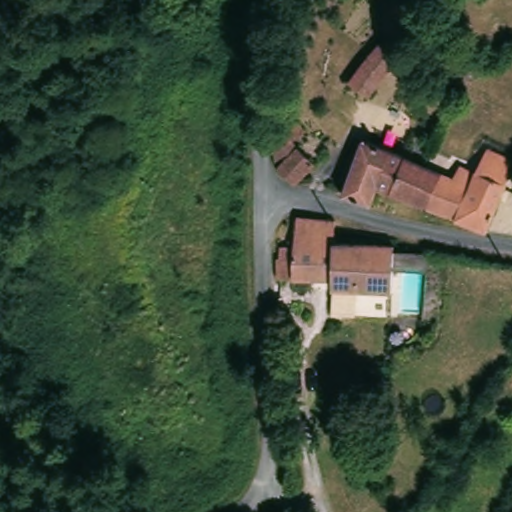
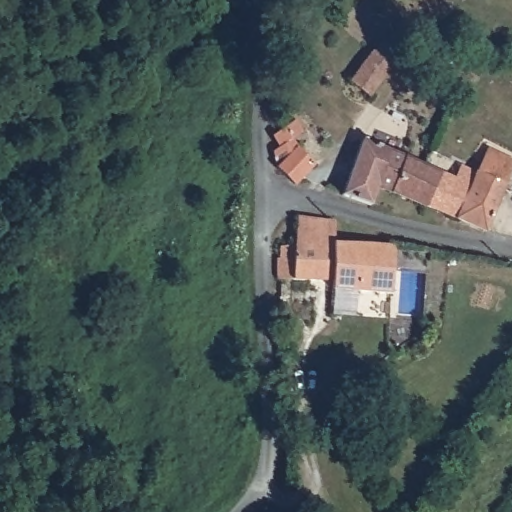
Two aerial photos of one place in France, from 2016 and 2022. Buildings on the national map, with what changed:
unchanged [(397,65),(370,99),(352,87),(367,65),(363,60),(377,42),(402,59),(397,65)]
unchanged [(288,121),(301,130),(292,143),(316,162),(299,184),(297,187),(279,169),(281,151),(271,140),(278,132),(288,121)]
unchanged [(350,179),(362,142),(390,151),(376,188),(371,203),(343,195),(345,192),(350,179)]
unchanged [(390,151),(423,162),(446,170),(428,208),(376,188),(390,151)]
unchanged [(462,176),(466,167),(478,173),(491,151),(512,162),(512,164),(484,229),(428,208),(446,170),(462,176)]
unchanged [(392,293),(327,288),(326,281),(277,279),(278,254),(281,255),(280,243),(294,245),(298,214),(319,217),(330,218),(332,219),(342,221),(340,241),(367,249),(392,241),(401,242),(392,293)]

